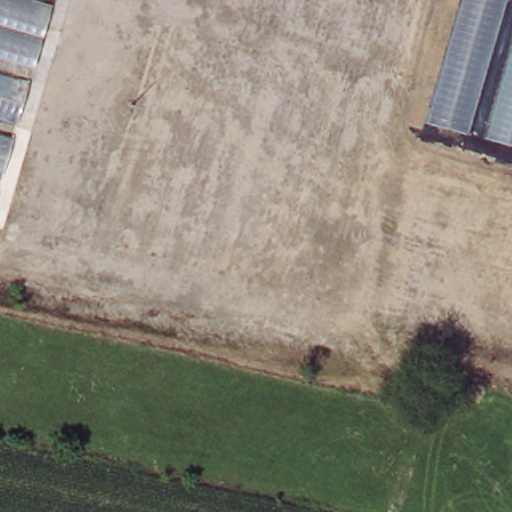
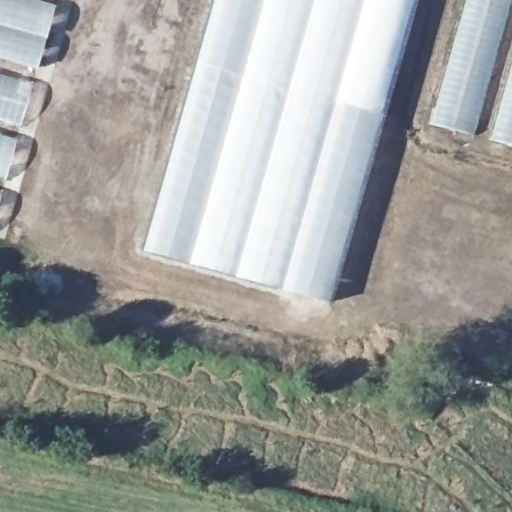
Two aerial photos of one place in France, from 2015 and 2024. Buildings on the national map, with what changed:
unchanged [(0,119),(0,0),(60,0),(24,126),(0,119)]
new [(326,302),(141,251),(212,0),(413,0),(326,302)]
unchanged [(431,123),(466,0),(512,0),(512,146),(431,123)]
new [(15,139),(0,189),(0,119),(17,124),(15,139)]

